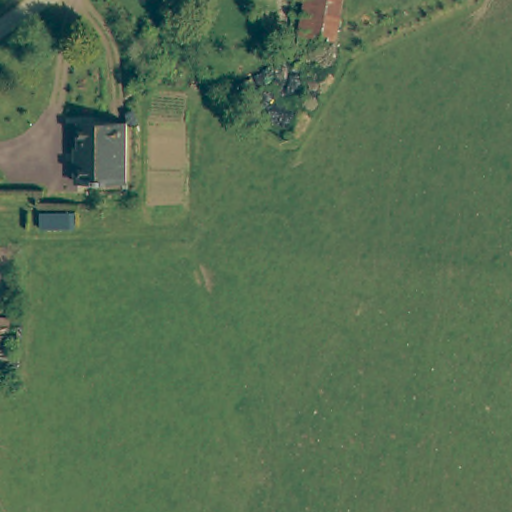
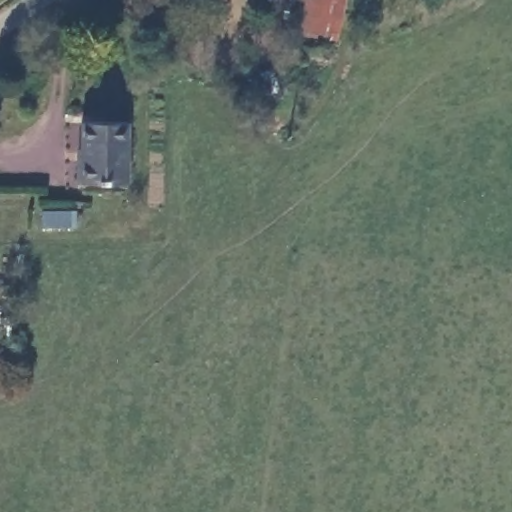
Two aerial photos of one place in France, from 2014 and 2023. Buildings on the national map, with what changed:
unchanged [(351,38),(297,36),(302,0),(355,0),(351,38)]
unchanged [(88,150),(90,114),(131,116),(127,183),(76,179),(78,149),(88,150)]

